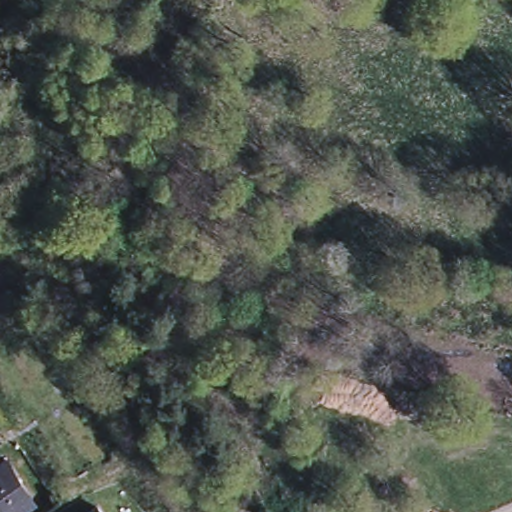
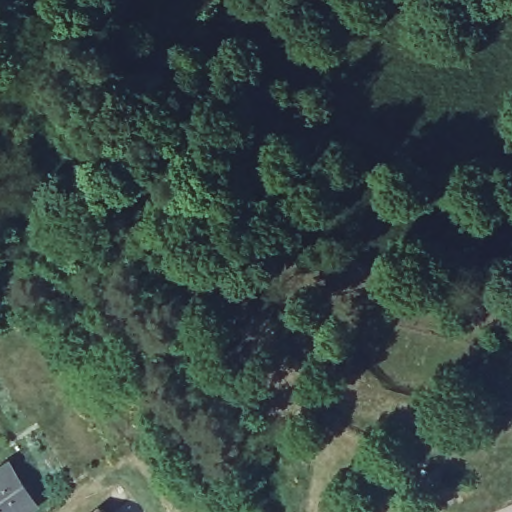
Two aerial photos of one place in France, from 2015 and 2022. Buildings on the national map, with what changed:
unchanged [(9,460),(37,502),(22,512),(0,512),(0,466),(9,460)]
unchanged [(97,505),(102,512),(88,512),(97,505)]

